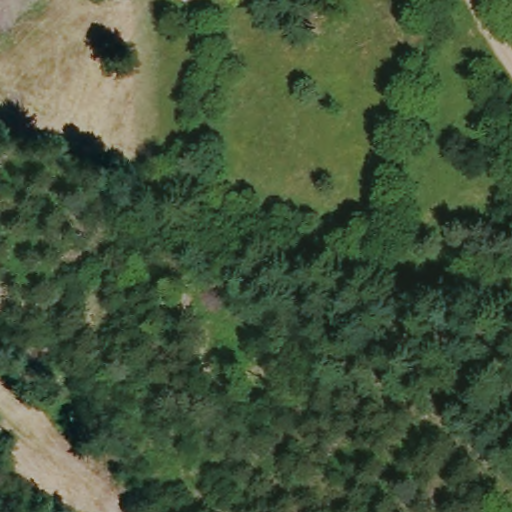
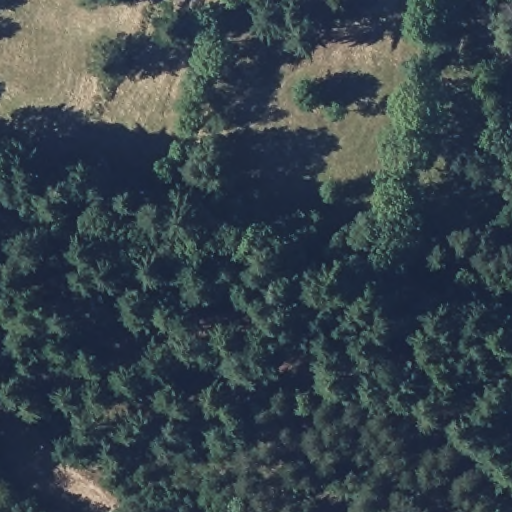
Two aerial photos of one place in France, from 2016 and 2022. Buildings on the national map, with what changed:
unchanged [(176,0),(191,0),(189,5),(176,0)]

